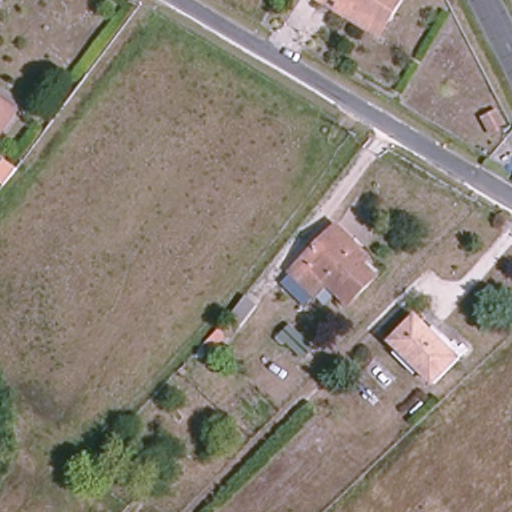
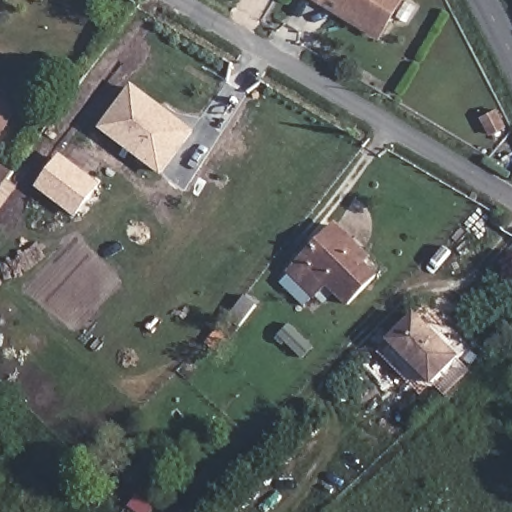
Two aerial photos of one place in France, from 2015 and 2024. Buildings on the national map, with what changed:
unchanged [(382,37),(315,0),(400,0),(382,37)]
new [(99,129),(133,84),(197,132),(163,177),(99,129)]
unchanged [(0,142),(0,95),(21,109),(0,142)]
unchanged [(485,118),(497,110),(509,129),(497,136),(485,118)]
new [(102,185),(77,219),(39,190),(64,156),(102,185)]
unchanged [(314,270),(300,282),(292,274),(345,224),(361,240),(387,267),(376,277),(347,305),(314,270)]
unchanged [(261,302),(243,322),(231,310),(249,289),(261,302)]
unchanged [(435,382),(394,340),(420,317),(458,359),(435,382)]
unchanged [(367,373),(380,360),(399,376),(387,391),(367,373)]

